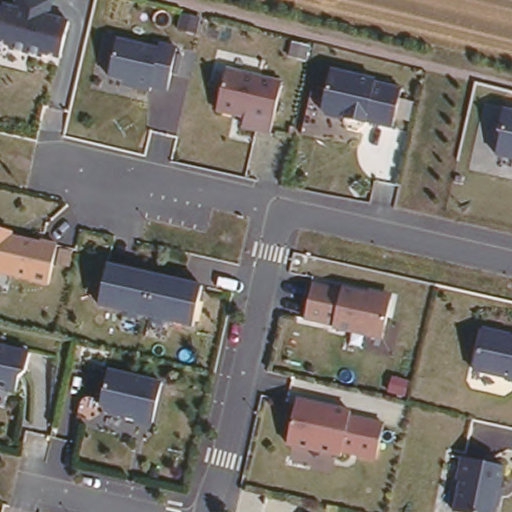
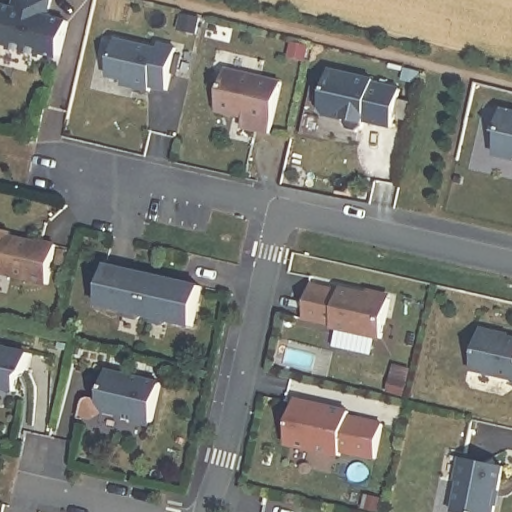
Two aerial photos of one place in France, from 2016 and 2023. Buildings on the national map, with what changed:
unchanged [(67,18),(61,57),(0,40),(0,25),(6,1),(13,3),(15,0),(52,0),(48,14),(67,18)]
unchanged [(177,44),(172,87),(156,84),(152,93),(127,85),(128,78),(110,74),(120,34),(155,42),(177,44)]
unchanged [(283,75),(272,131),(242,125),(244,112),(218,104),(227,64),(283,75)]
unchanged [(402,84),(394,126),(324,112),(334,67),(402,84)]
unchanged [(502,133),(496,131),(504,107),(512,109),(512,160),(496,156),(502,133)]
unchanged [(52,282),(0,271),(0,225),(14,228),(16,232),(59,241),(52,282)]
unchanged [(203,279),(194,326),(103,306),(112,260),(203,279)]
unchanged [(343,290),(345,285),(369,289),(371,286),(390,289),(384,336),(307,317),(315,281),(343,290)]
unchanged [(512,375),(474,364),(483,326),(512,331),(512,375)]
unchanged [(28,347),(21,391),(0,386),(0,342),(28,347)]
unchanged [(163,381),(153,423),(104,407),(110,370),(163,381)]
unchanged [(348,403),(349,411),(384,418),(378,459),(291,441),(299,394),(348,403)]
unchanged [(496,512),(465,512),(456,510),(465,455),(505,464),(496,512)]

